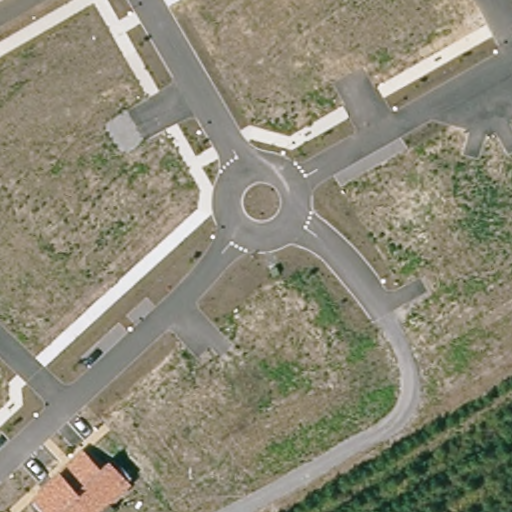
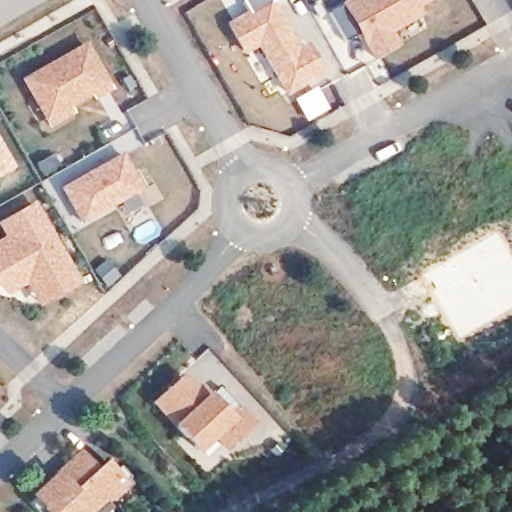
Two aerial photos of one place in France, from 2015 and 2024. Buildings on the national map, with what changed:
new [(257,47),(243,55),(228,25),(269,0),(271,0),(300,49),(309,43),(326,75),(287,96),(257,47)]
new [(348,0),(431,0),(420,6),(424,15),(393,31),(400,45),(373,61),(360,36),(345,44),(329,14),(343,6),(342,4),(348,0)]
new [(115,87),(95,99),(92,94),(73,105),(76,112),(49,126),(45,119),(21,77),(88,40),(111,81),(115,87)]
new [(0,175),(0,142),(15,167),(0,175)]
new [(61,190),(124,152),(143,190),(83,225),(61,190)]
new [(0,241),(6,237),(0,226),(0,223),(36,201),(81,283),(39,306),(27,285),(6,295),(0,288),(0,241)]
new [(215,438),(199,453),(175,426),(174,427),(153,403),(183,375),(196,389),(201,383),(208,392),(230,416),(241,406),(257,423),(227,451),(215,438)]
unchanged [(81,450),(99,466),(106,458),(130,482),(98,512),(46,512),(31,495),(57,471),(81,450)]

